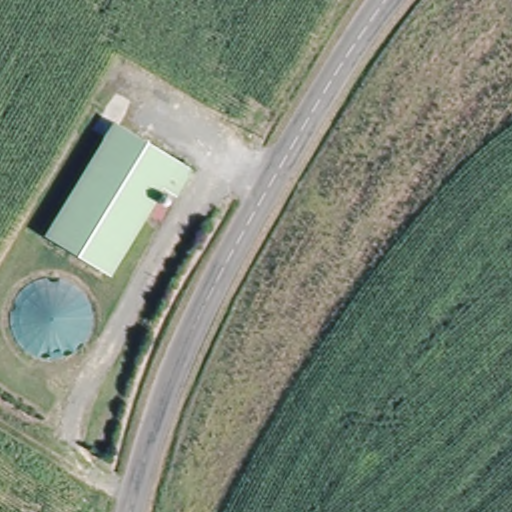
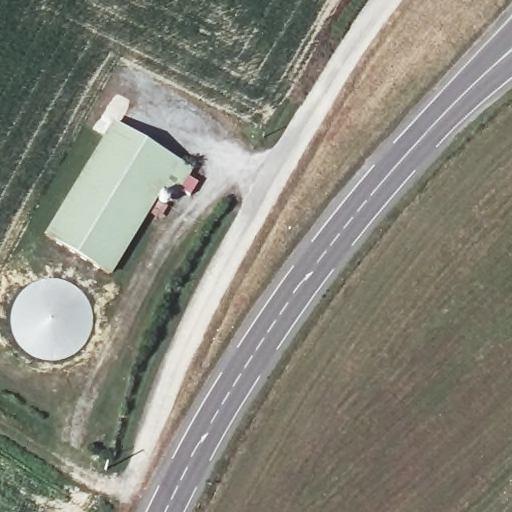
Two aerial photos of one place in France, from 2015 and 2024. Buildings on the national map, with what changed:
unchanged [(117,124),(193,171),(178,197),(165,189),(157,202),(166,207),(159,219),(150,214),(112,275),(48,236),(117,124)]

